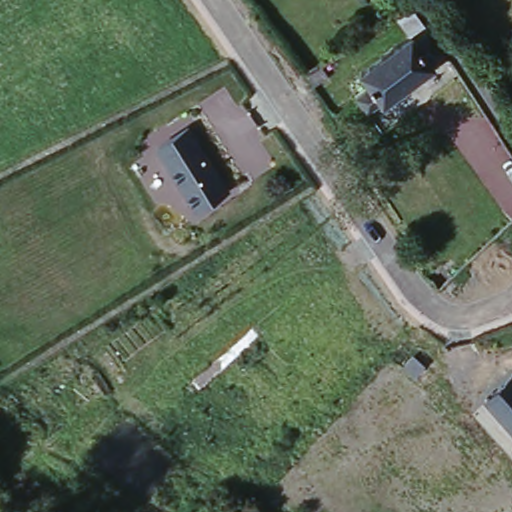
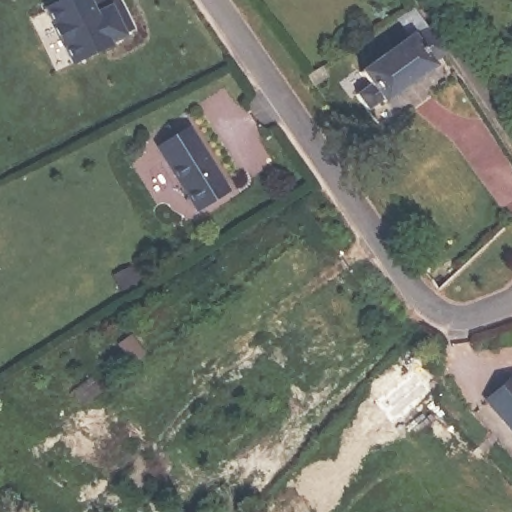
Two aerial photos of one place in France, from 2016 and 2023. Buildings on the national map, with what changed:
new [(60,0),(89,0),(96,14),(108,8),(122,36),(76,58),(49,5),(60,0)]
unchanged [(355,68),(351,65),(407,25),(394,6),(402,0),(411,0),(440,45),(428,55),(429,57),(377,96),(375,93),(360,104),(342,79),(355,68)]
unchanged [(325,59),(330,67),(321,75),(315,66),(325,59)]
unchanged [(330,80),(339,74),(342,79),(334,85),(330,80)]
unchanged [(196,212),(157,143),(190,124),(231,191),(196,212)]
unchanged [(484,402),(512,377),(512,431),(484,402)]

